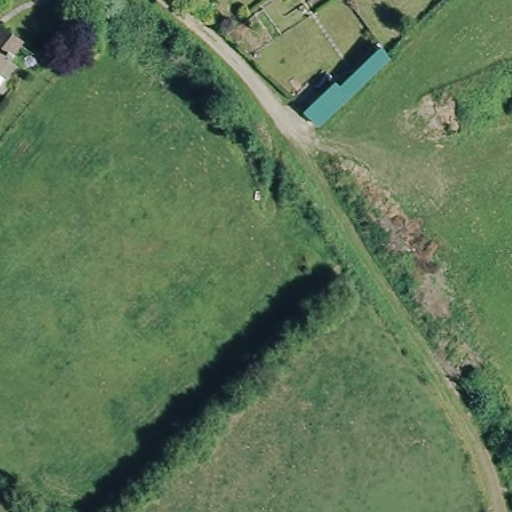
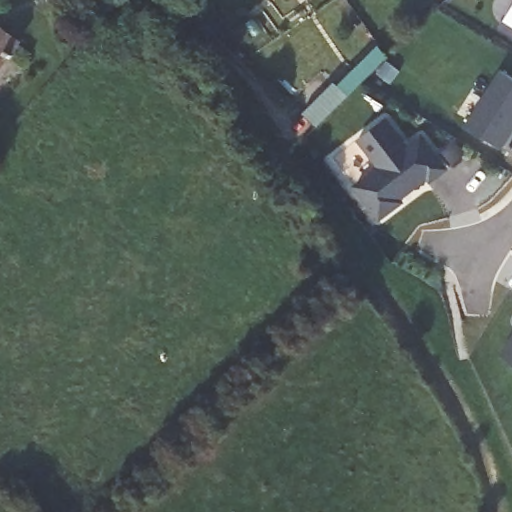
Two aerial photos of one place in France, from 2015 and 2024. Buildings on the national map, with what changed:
new [(512,5),(512,27),(502,21),(512,5)]
unchanged [(22,40),(0,68),(0,26),(2,24),(22,40)]
unchanged [(301,116),(373,49),(387,63),(315,131),(301,116)]
new [(466,126),(500,70),(512,77),(512,134),(503,148),(466,126)]
new [(355,186),(380,168),(358,139),(385,118),(407,146),(421,135),(446,168),(430,180),(422,169),(404,183),(410,190),(400,198),(402,202),(379,218),(355,186)]
new [(404,183),(422,169),(428,177),(410,190),(404,183)]
new [(512,337),(512,362),(501,355),(512,337)]

